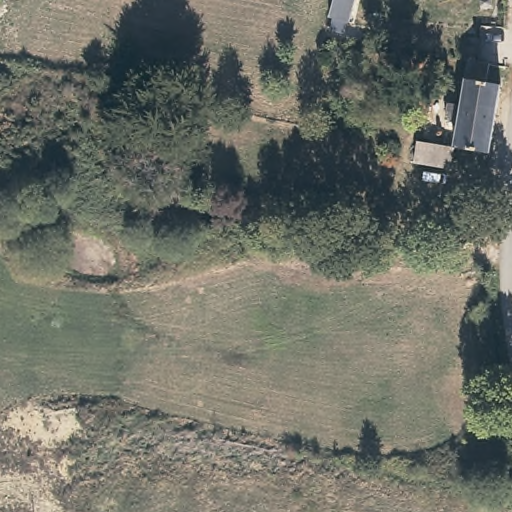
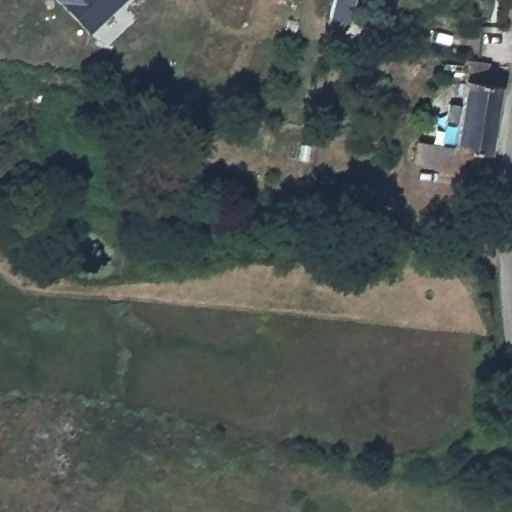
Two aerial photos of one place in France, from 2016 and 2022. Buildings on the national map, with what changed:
new [(59,0),(123,0),(89,31),(59,0)]
unchanged [(493,66),(503,68),(492,138),(456,132),(461,106),(451,104),(454,85),(465,86),(472,46),(496,50),(493,66)]
unchanged [(452,157),(417,151),(422,126),(456,132),(452,157)]

